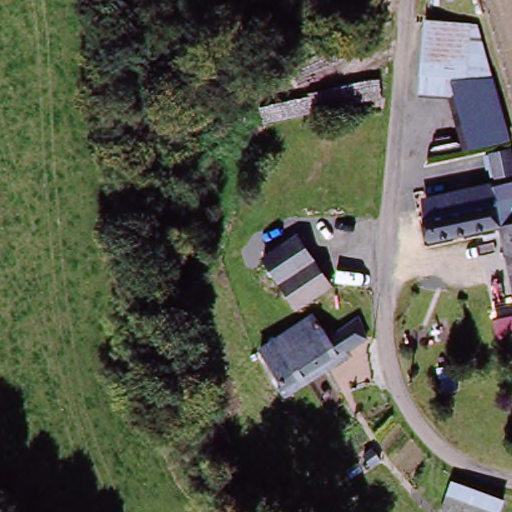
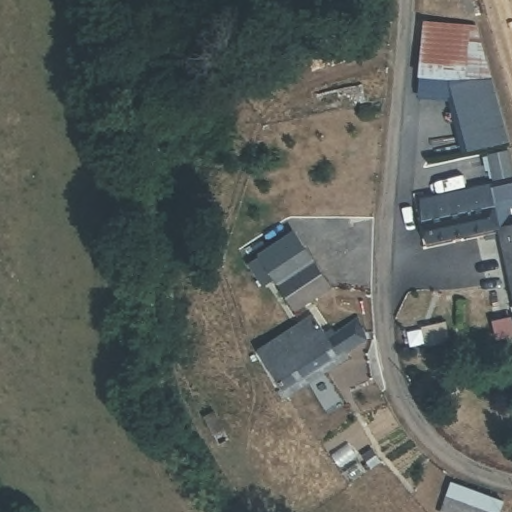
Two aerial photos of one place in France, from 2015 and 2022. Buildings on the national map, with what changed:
unchanged [(507,135),(479,141),(463,94),(424,93),(422,25),(473,24),(507,135)]
unchanged [(493,184),(490,175),(484,176),(481,164),(504,157),(511,177),(493,184)]
unchanged [(488,191),(489,195),(512,189),(512,291),(493,232),(429,251),(417,211),(488,191)]
unchanged [(265,255),(301,237),(307,250),(328,290),(291,310),(271,268),(265,255)]
unchanged [(259,348),(313,319),(317,327),(322,336),(329,332),(333,339),(353,327),(364,347),(281,391),(263,355),(259,348)]
unchanged [(453,483),(505,498),(501,512),(444,512),(453,483)]

